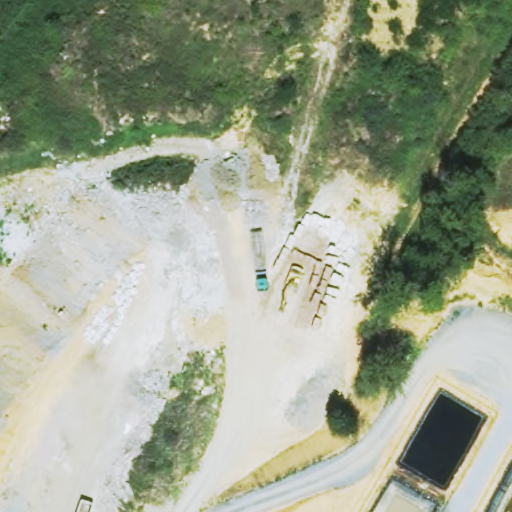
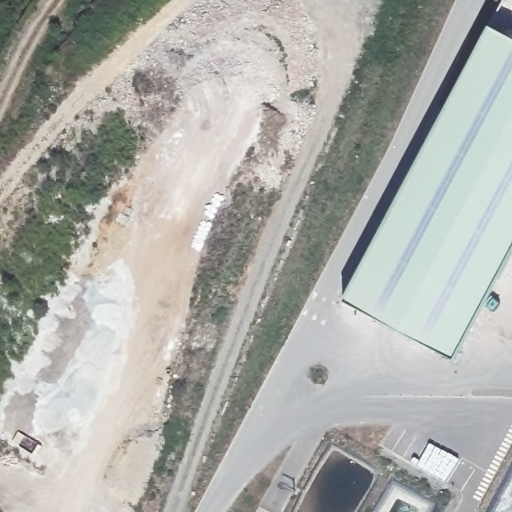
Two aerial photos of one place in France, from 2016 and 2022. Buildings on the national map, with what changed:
new [(492,28),(512,39),(512,255),(457,360),(347,300),(492,28)]

